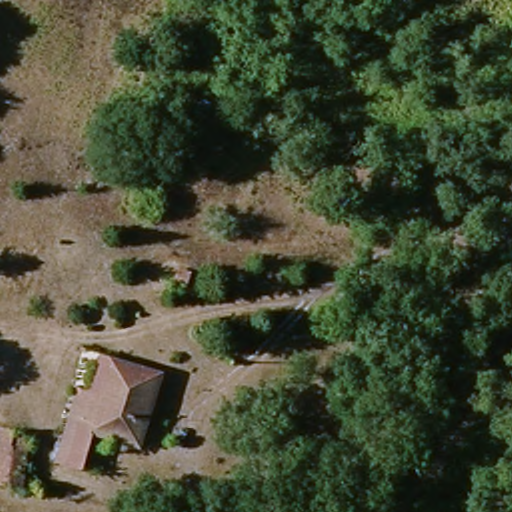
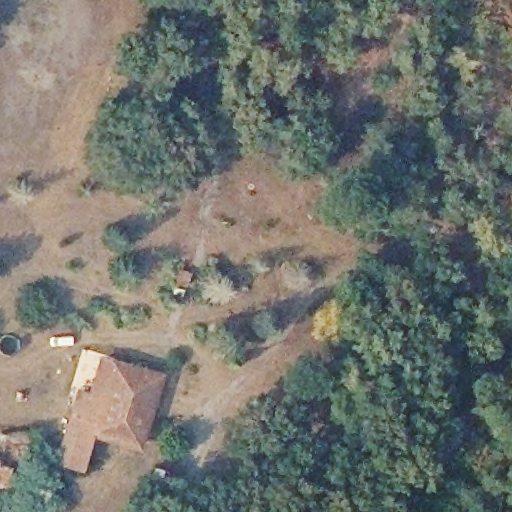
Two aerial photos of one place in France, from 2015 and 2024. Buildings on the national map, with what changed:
unchanged [(157,367),(153,405),(143,441),(97,435),(93,465),(56,460),(67,386),(94,390),(99,358),(157,367)]
unchanged [(24,432),(19,482),(0,481),(0,430),(24,432)]

